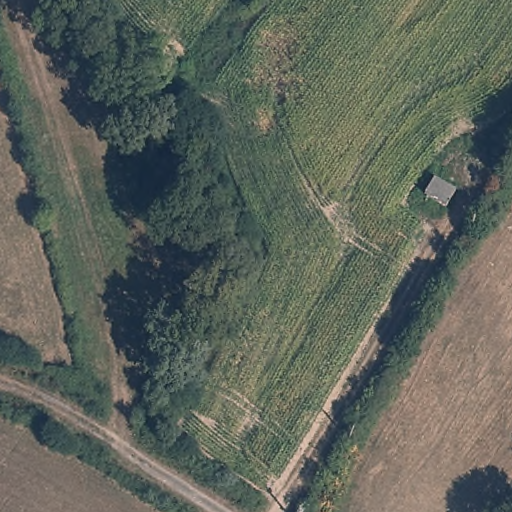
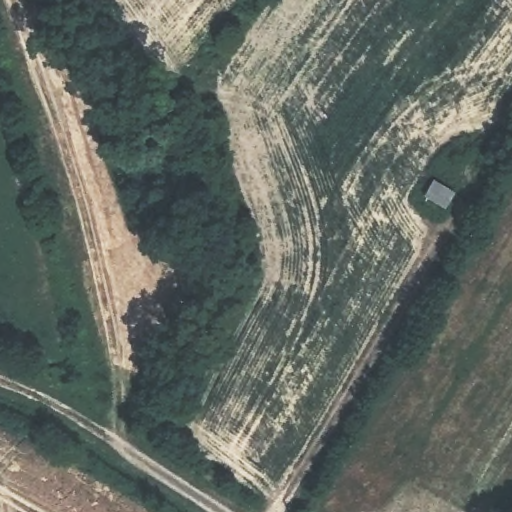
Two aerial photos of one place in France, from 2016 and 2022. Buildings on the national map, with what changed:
unchanged [(446,210),(420,196),(431,176),(458,189),(446,210)]

